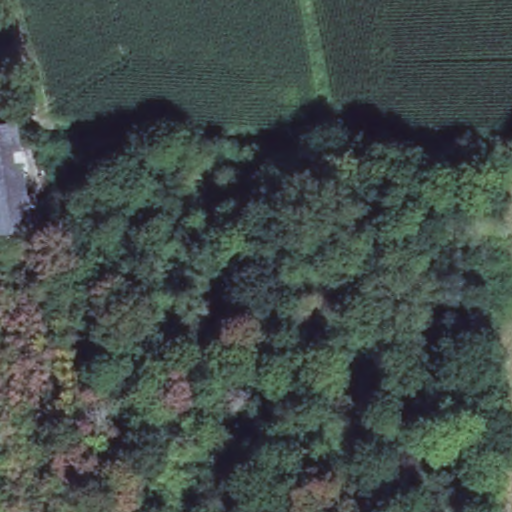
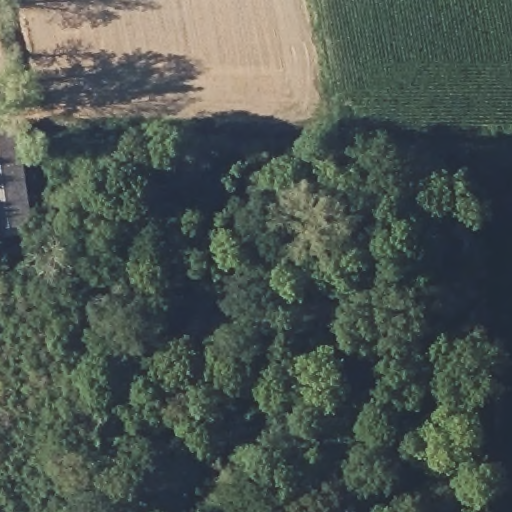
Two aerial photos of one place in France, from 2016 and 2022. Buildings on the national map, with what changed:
unchanged [(48,219),(0,226),(0,129),(25,127),(48,219)]

